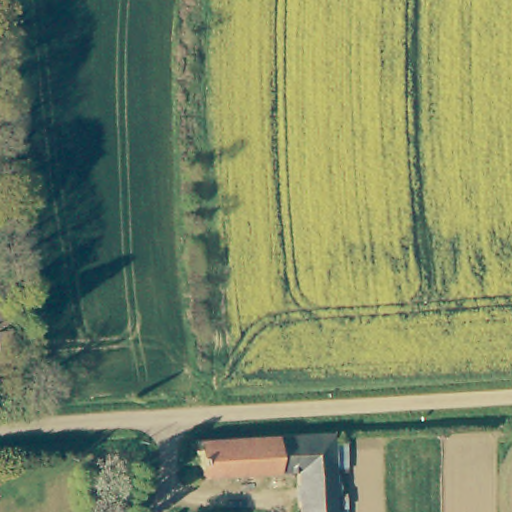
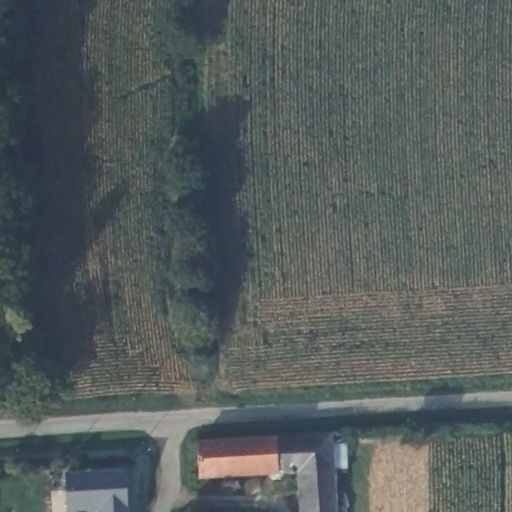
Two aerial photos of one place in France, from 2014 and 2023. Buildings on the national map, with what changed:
unchanged [(6,315),(23,312),(26,333),(9,335),(6,315)]
unchanged [(340,512),(302,512),(300,474),(201,478),(199,440),(335,432),(340,512)]
new [(100,510),(69,511),(65,473),(126,469),(130,512),(100,512),(100,510)]

